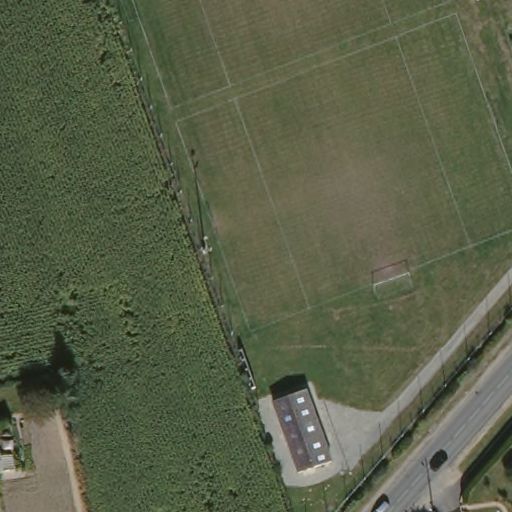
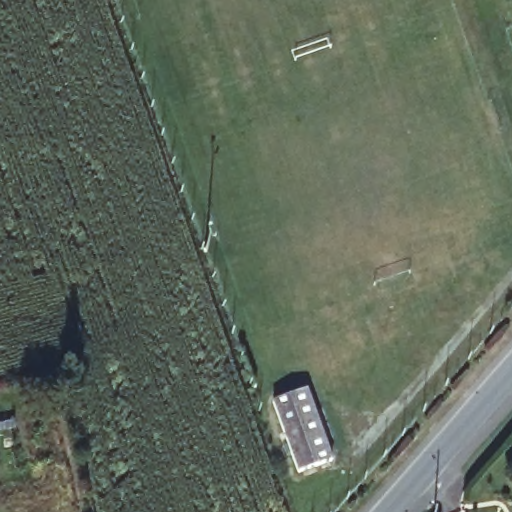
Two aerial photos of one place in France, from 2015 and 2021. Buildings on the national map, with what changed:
unchanged [(296,390),(322,463),(306,468),(280,396),(296,390)]

